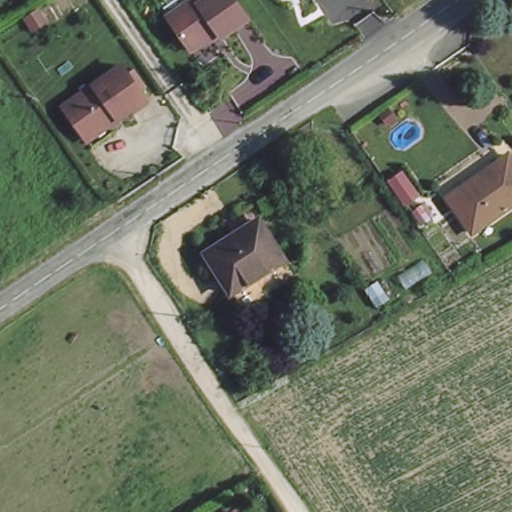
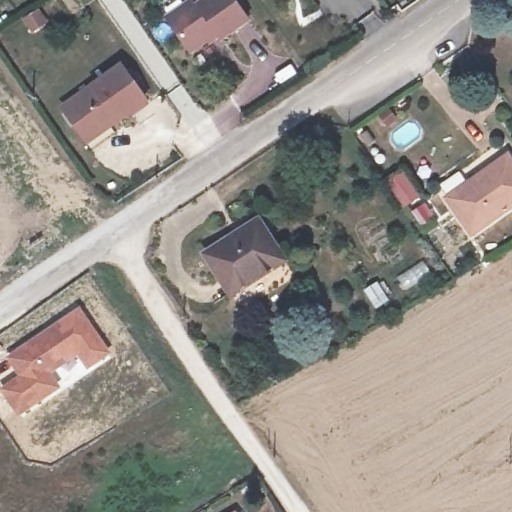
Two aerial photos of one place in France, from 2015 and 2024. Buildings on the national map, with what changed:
unchanged [(252,19),(227,37),(222,31),(197,50),(173,15),(193,0),(201,0),(202,2),(205,0),(239,0),(252,19)]
unchanged [(119,116),(88,136),(67,106),(127,65),(151,100),(122,119),(119,116)]
unchanged [(446,194),(506,151),(512,160),(512,201),(473,230),(446,194)]
unchanged [(282,256),(232,290),(205,250),(257,217),(282,256)]
new [(16,375),(5,357),(80,306),(112,353),(83,372),(74,361),(57,373),(65,383),(17,416),(0,390),(0,386),(16,375)]

